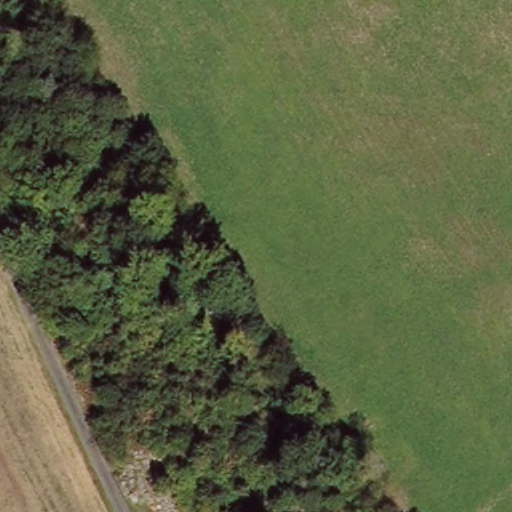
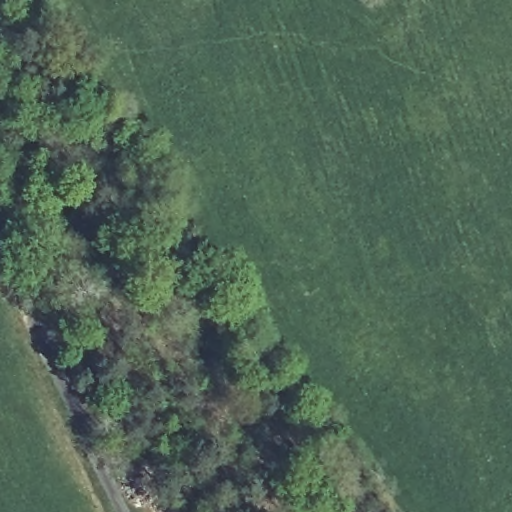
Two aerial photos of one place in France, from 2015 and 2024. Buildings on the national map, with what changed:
[]

